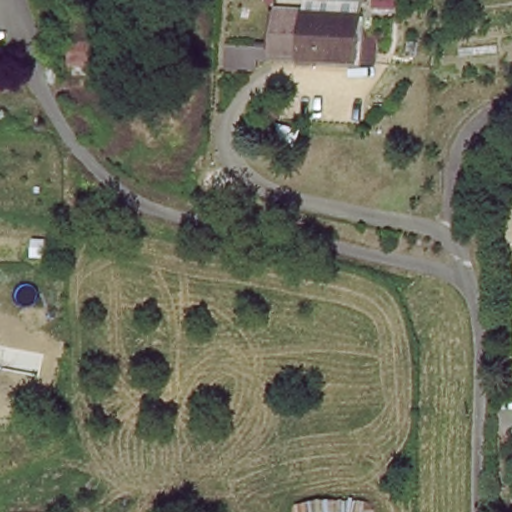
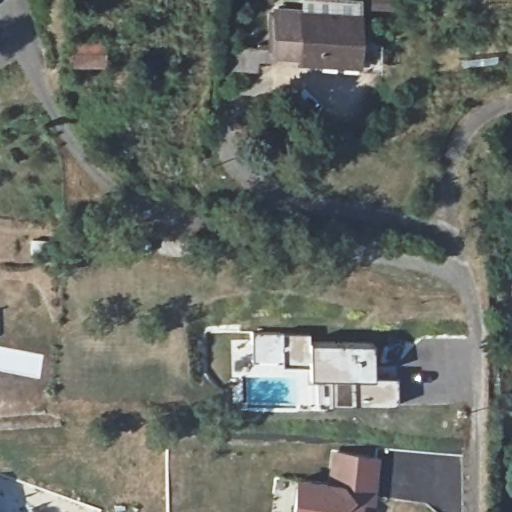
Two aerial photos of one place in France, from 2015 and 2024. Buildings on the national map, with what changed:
unchanged [(363,64),(279,55),(280,6),(365,10),(363,64)]
new [(327,403),(328,382),(308,381),(308,376),(309,364),(282,365),(282,362),(253,362),(253,333),(282,333),(310,333),(309,342),(372,342),(372,376),(397,377),(397,405),(327,403)]
new [(295,476),(328,480),(331,450),(380,456),(373,505),(363,503),(361,512),(290,512),(295,476)]

